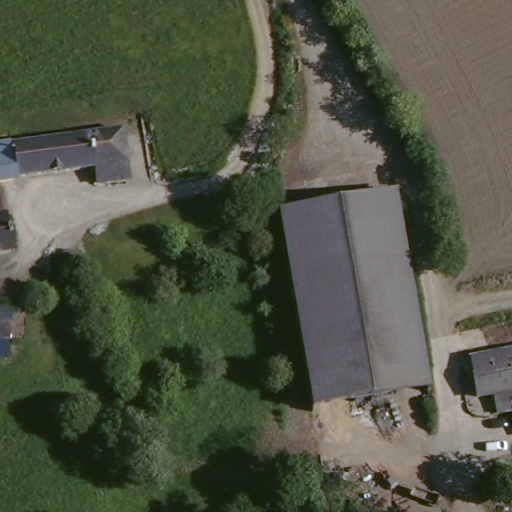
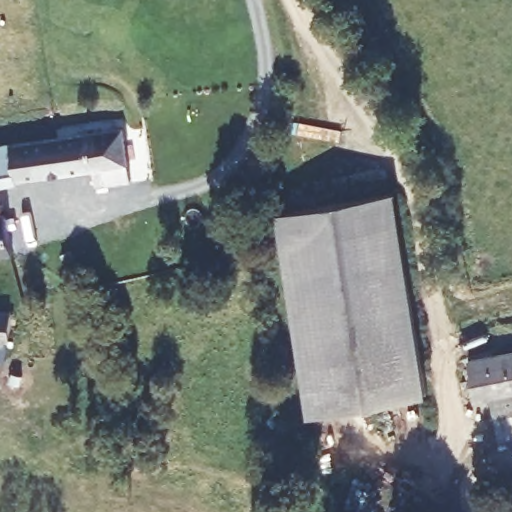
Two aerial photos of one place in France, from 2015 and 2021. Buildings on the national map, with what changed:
unchanged [(125,132),(132,182),(97,186),(94,171),(0,183),(0,146),(7,145),(125,132)]
unchanged [(0,217),(0,191),(3,216),(0,217)]
unchanged [(391,192),(425,392),(312,411),(279,209),(391,192)]
unchanged [(12,214),(17,252),(0,255),(0,217),(3,216),(12,214)]
unchanged [(18,340),(0,340),(0,311),(21,311),(18,340)]
unchanged [(512,352),(512,412),(492,416),(488,399),(474,401),(466,361),(512,352)]

